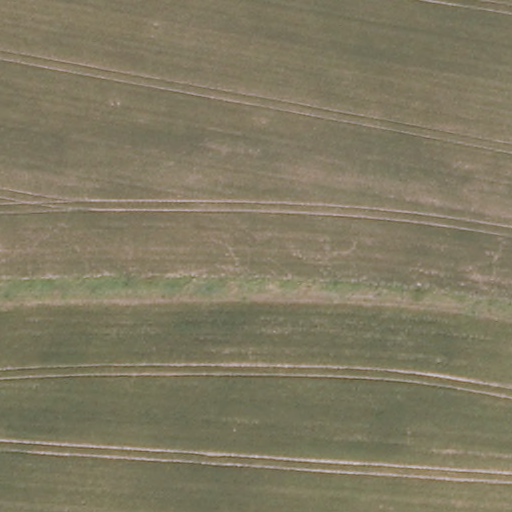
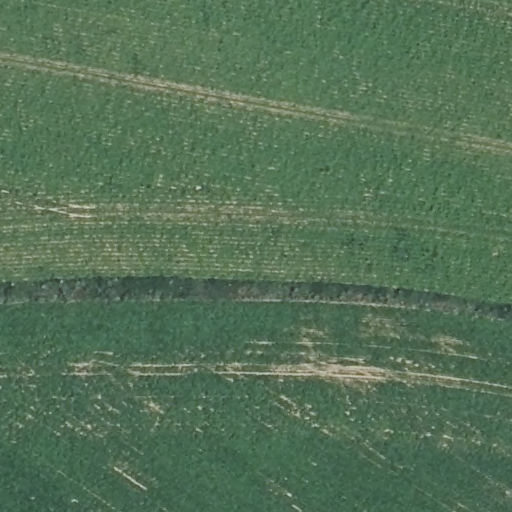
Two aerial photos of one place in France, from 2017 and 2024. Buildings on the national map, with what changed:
[]

